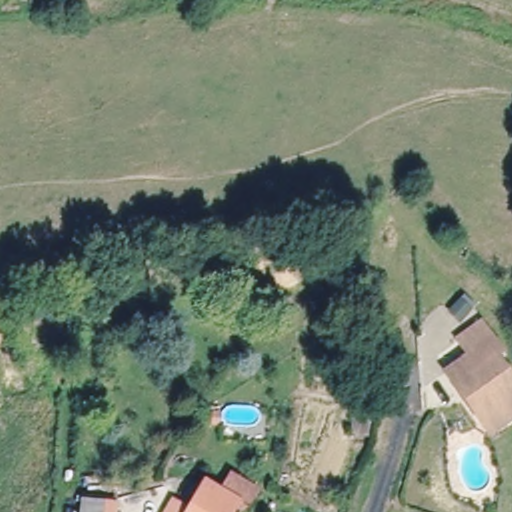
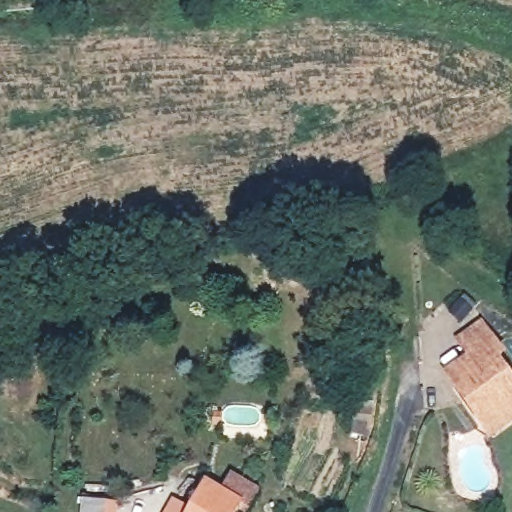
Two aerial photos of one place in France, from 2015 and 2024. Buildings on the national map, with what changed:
unchanged [(460,389),(451,376),(465,366),(476,358),(466,343),(485,330),(506,358),(499,363),(512,381),(512,426),(510,428),(495,438),(482,420),(460,389)]
unchanged [(191,510),(209,485),(220,493),(233,474),(255,489),(243,508),(236,503),(231,512),(168,512),(175,500),(191,510)]

